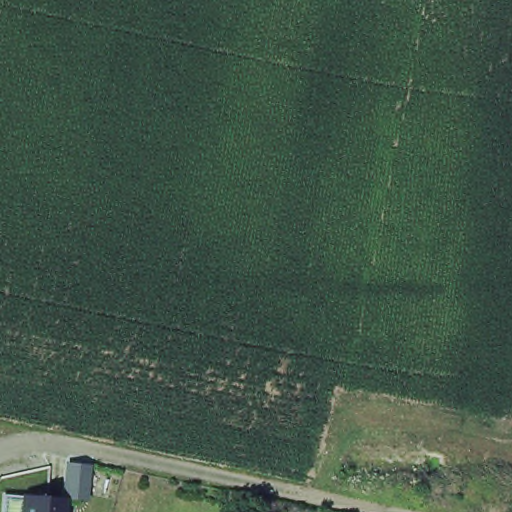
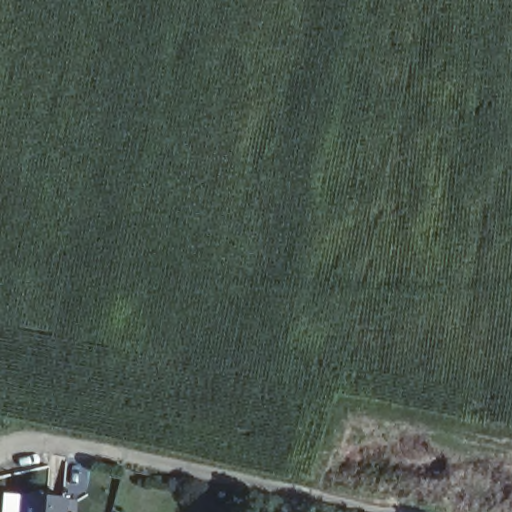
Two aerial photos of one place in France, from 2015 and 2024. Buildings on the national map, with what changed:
unchanged [(62,512),(25,512),(26,496),(64,498),(62,512)]

